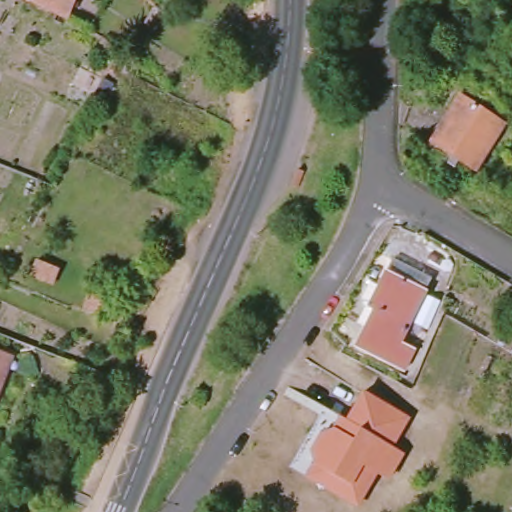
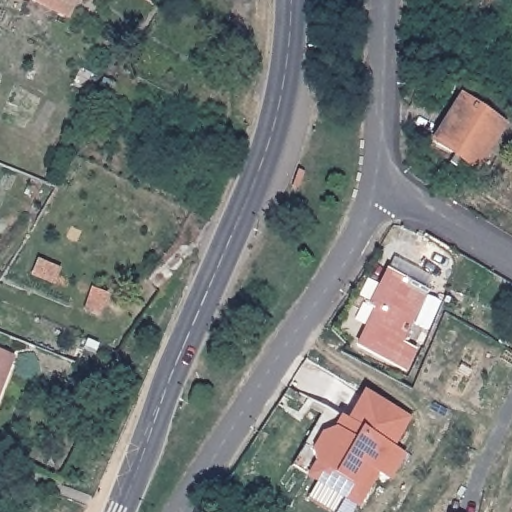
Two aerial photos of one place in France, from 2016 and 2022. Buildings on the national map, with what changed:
unchanged [(25,0),(29,0),(28,1),(25,0)]
unchanged [(71,0),(63,19),(28,1),(29,0),(71,0)]
unchanged [(498,123),(470,169),(433,145),(449,119),(443,115),(454,96),(498,123)]
unchanged [(368,310),(364,308),(381,273),(420,291),(395,344),(410,351),(400,370),(351,346),(368,310)]
unchanged [(0,376),(0,352),(8,355),(0,376)]
unchanged [(206,393),(200,406),(191,403),(197,389),(206,393)]
unchanged [(407,418),(391,446),(402,453),(387,479),(376,472),(356,505),(341,495),(348,483),(313,463),(310,451),(320,433),(333,428),(341,433),(348,422),(346,421),(363,392),(407,418)]

